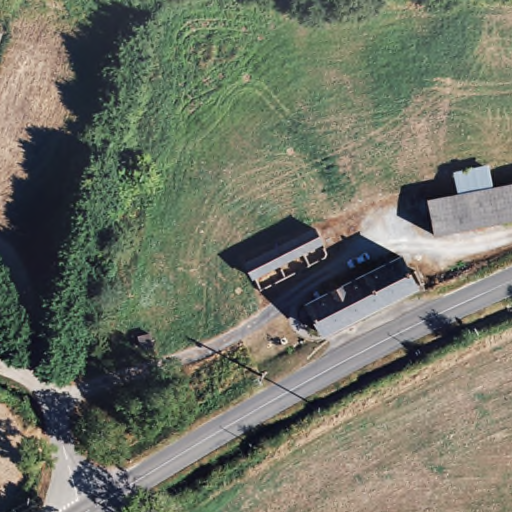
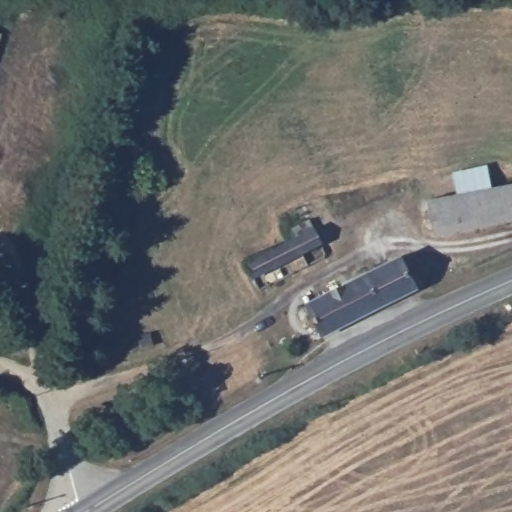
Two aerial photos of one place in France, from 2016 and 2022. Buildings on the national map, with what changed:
unchanged [(1,35),(0,38),(0,35),(1,35)]
unchanged [(512,221),(431,237),(423,202),(487,190),(512,184),(512,221)]
unchanged [(291,243),(315,231),(322,245),(253,281),(246,266),(291,243)]
unchanged [(398,257),(413,288),(320,336),(312,323),(303,325),(297,320),(297,316),(305,309),(303,305),(398,257)]
unchanged [(151,336),(154,346),(142,350),(139,340),(151,336)]

